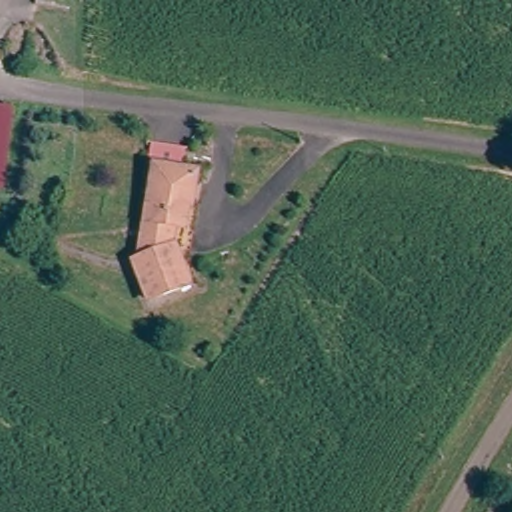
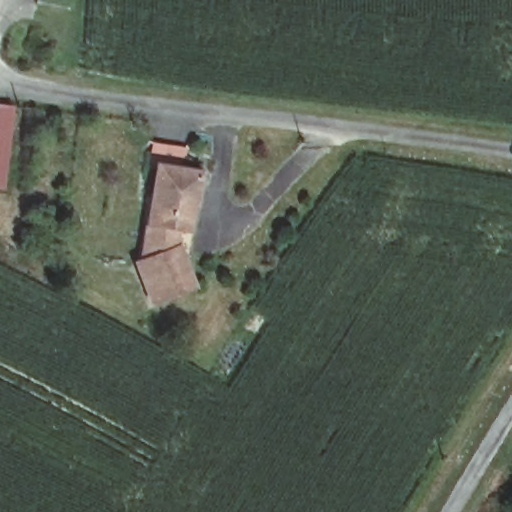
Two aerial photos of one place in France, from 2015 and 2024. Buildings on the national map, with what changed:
unchanged [(3,189),(0,189),(0,108),(12,109),(3,189)]
unchanged [(174,228),(172,244),(176,244),(194,280),(157,298),(138,261),(143,260),(150,167),(168,170),(191,172),(188,202),(184,202),(182,226),(174,228)]

